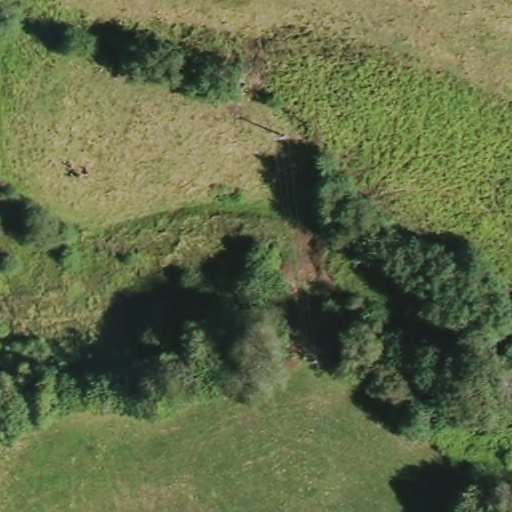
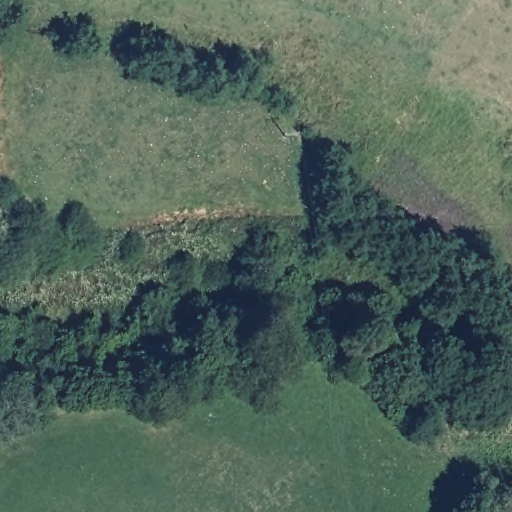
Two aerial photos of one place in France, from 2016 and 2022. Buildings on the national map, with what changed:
[]

